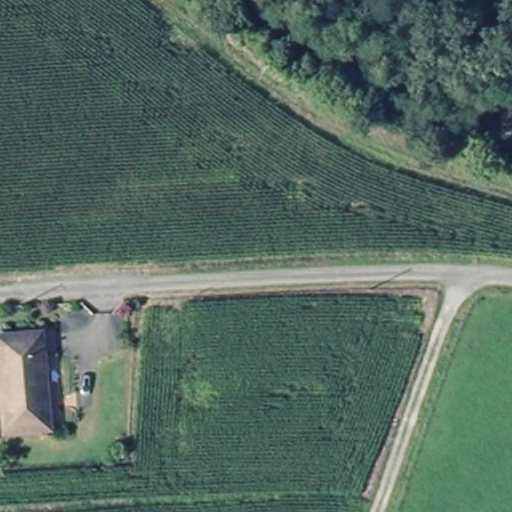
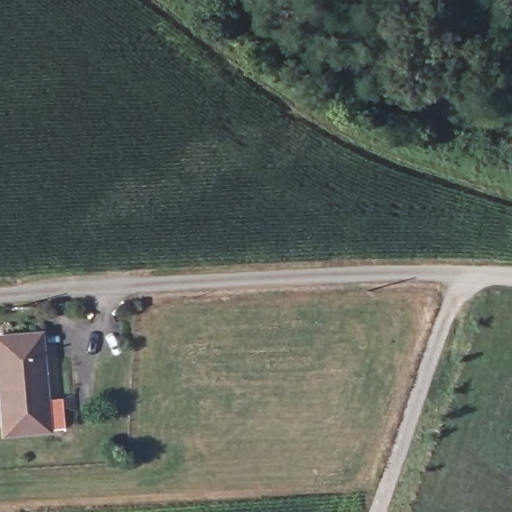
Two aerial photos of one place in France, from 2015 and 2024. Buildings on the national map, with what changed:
unchanged [(4,431),(0,396),(0,335),(38,330),(45,388),(48,424),(42,426),(4,431)]

